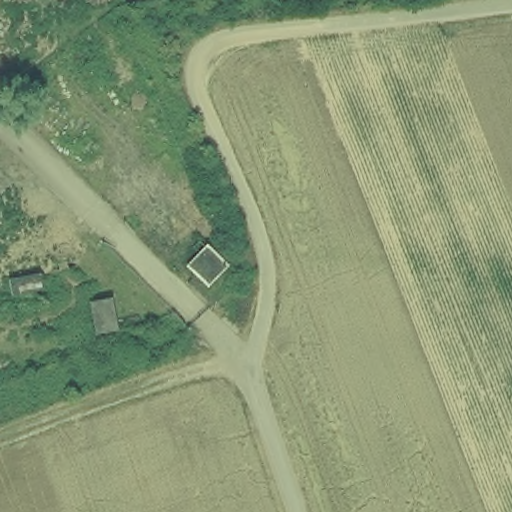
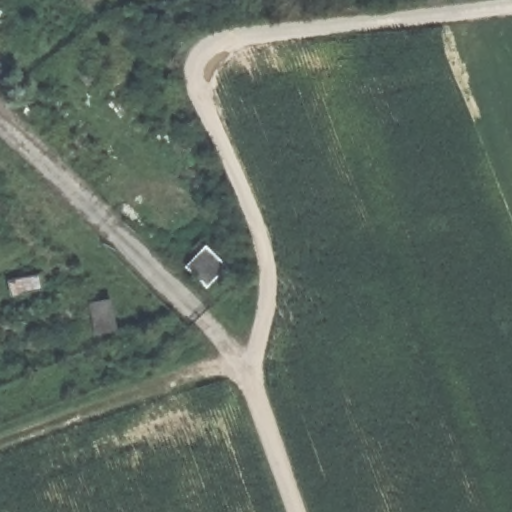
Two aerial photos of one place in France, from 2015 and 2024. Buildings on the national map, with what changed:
unchanged [(211,244),(235,270),(210,293),(188,268),(211,244)]
unchanged [(48,293),(13,300),(9,281),(43,274),(48,293)]
unchanged [(122,336),(101,340),(92,303),(115,301),(122,336)]

